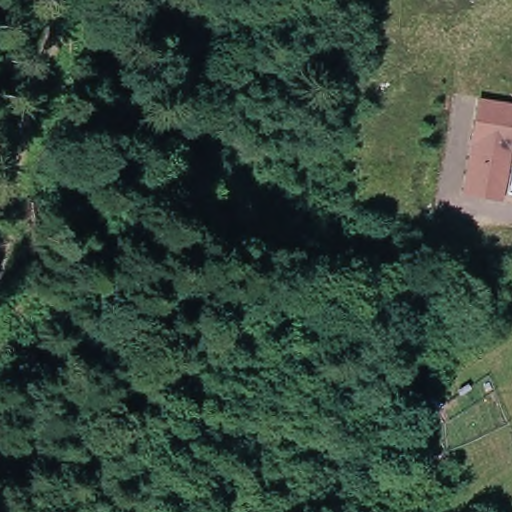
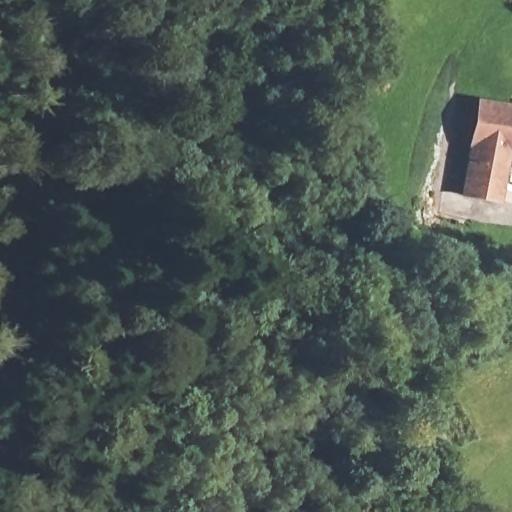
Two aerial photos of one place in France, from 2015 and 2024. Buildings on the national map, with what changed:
unchanged [(501,203),(460,199),(476,102),(512,109),(512,155),(505,155),(501,203)]

